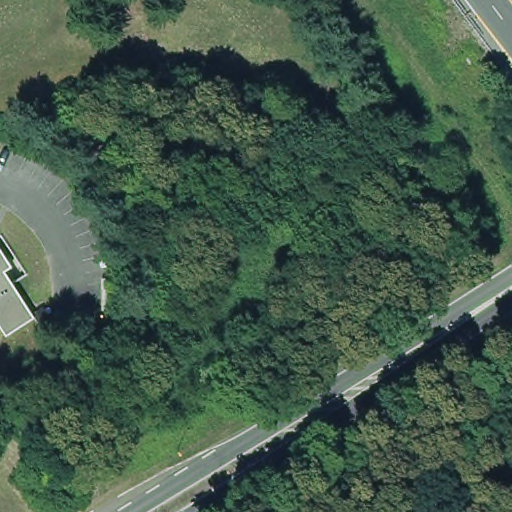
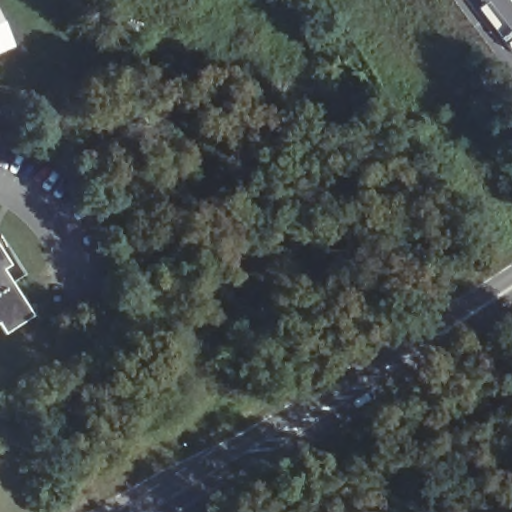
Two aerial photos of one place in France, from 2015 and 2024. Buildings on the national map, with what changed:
new [(16,48),(0,55),(0,14),(16,48)]
unchanged [(1,244),(15,265),(8,270),(38,316),(9,335),(2,323),(0,325),(0,244),(1,244)]

